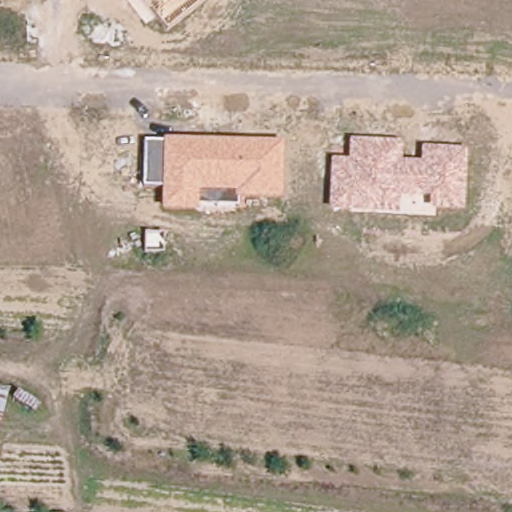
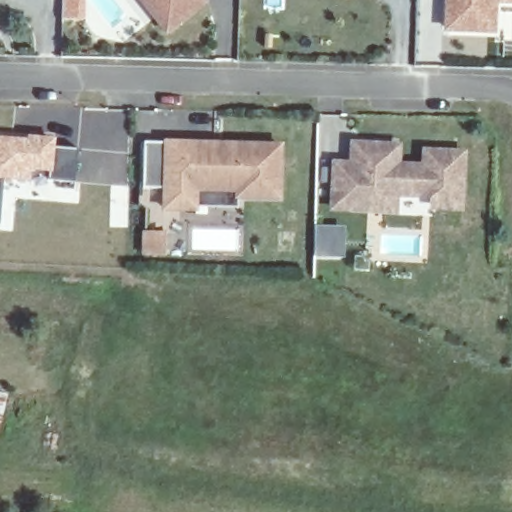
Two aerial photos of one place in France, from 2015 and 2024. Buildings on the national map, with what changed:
unchanged [(204,1),(166,31),(156,16),(159,7),(153,0),(203,0),(204,1)]
new [(450,0),(512,0),(512,1),(496,1),(495,31),(477,31),(448,30),(450,0)]
new [(27,140),(27,136),(56,139),(55,149),(75,151),(72,182),(50,180),(50,173),(31,172),(30,182),(2,180),(0,208),(0,137),(27,140)]
unchanged [(163,189),(143,188),(145,142),(164,142),(164,140),(284,143),(282,202),(239,200),(239,209),(199,206),(199,214),(162,211),(163,189)]
unchanged [(331,159),(349,161),(350,140),(403,144),(403,162),(420,163),(421,148),(468,151),(465,214),(431,212),(432,201),(400,198),(398,217),(329,212),(331,165),(331,159)]
unchanged [(10,399),(0,432),(0,396),(10,399)]

